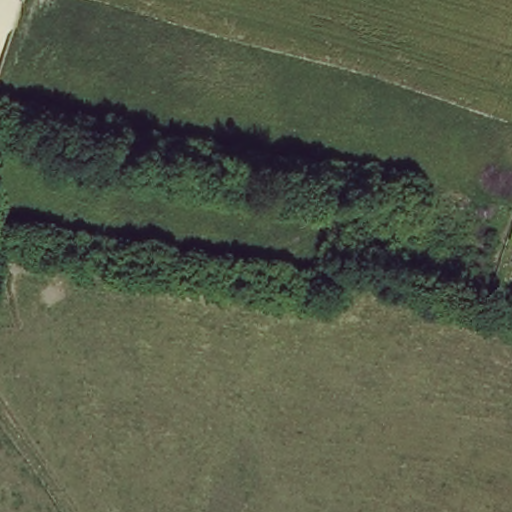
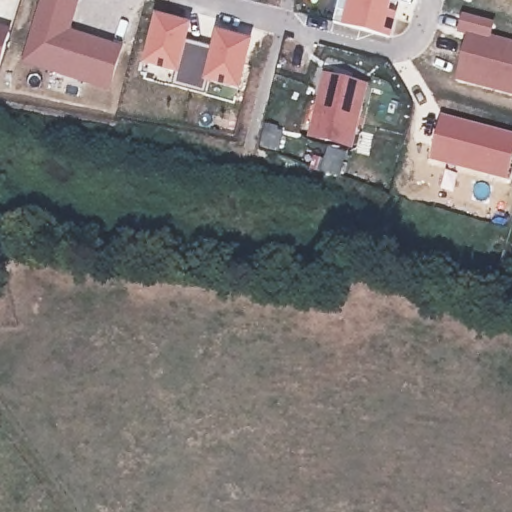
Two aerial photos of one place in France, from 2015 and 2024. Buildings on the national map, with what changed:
new [(78,0),(71,30),(122,45),(108,91),(18,63),(36,0),(78,0)]
new [(387,18),(397,21),(392,33),(348,21),(354,0),(381,0),(390,3),(387,18)]
new [(452,81),(467,35),(454,31),(459,13),(495,21),(492,36),(512,41),(512,96),(452,81)]
new [(153,15),(192,24),(187,41),(175,76),(138,66),(153,15)]
unchanged [(0,55),(0,25),(8,27),(0,55)]
new [(210,46),(213,31),(251,40),(238,92),(203,84),(210,46)]
new [(175,76),(187,41),(210,46),(203,84),(201,92),(173,82),(175,76)]
new [(316,170),(326,144),(305,137),(320,71),(369,84),(354,151),(349,150),(342,178),(316,170)]
new [(439,113),(512,132),(512,160),(507,180),(426,159),(439,113)]
new [(262,122),(283,127),(278,151),(257,146),(262,122)]

